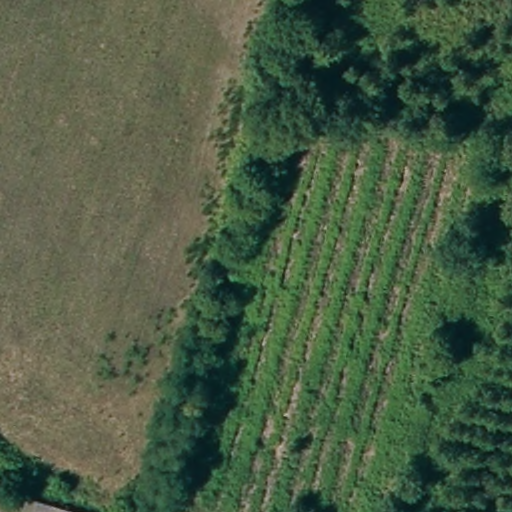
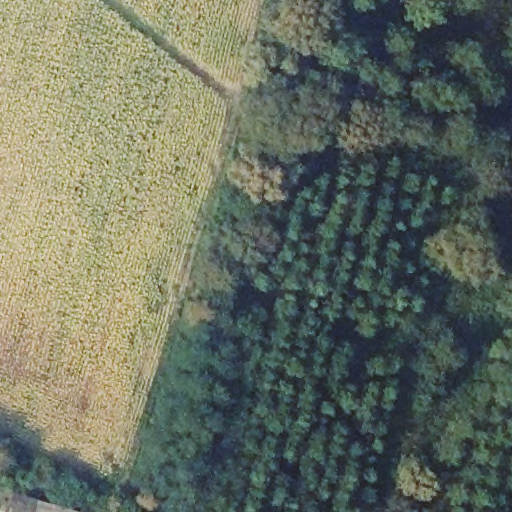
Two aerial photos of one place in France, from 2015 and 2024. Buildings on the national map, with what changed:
unchanged [(35,501),(66,512),(32,512),(35,501)]

